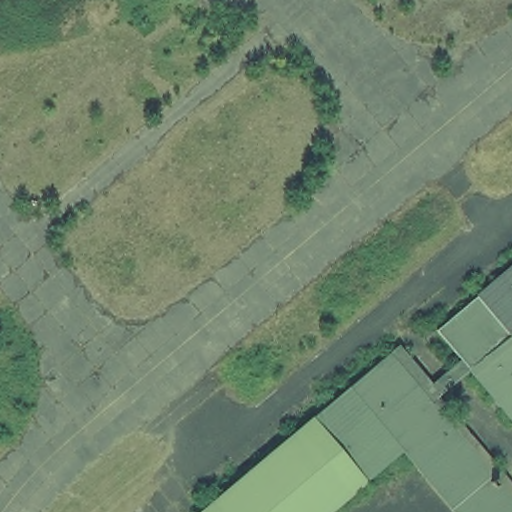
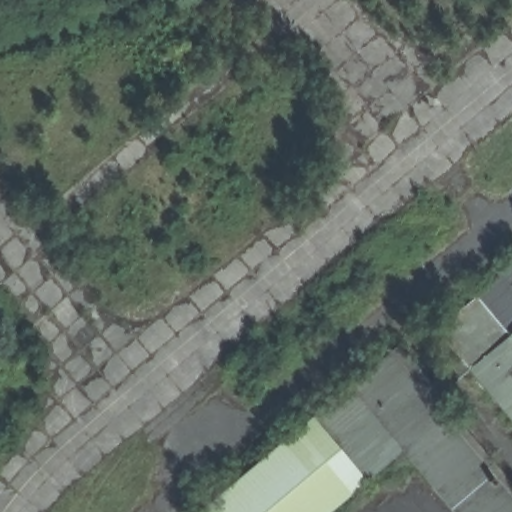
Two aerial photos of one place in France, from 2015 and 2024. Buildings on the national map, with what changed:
unchanged [(512,270),(512,419),(441,333),(512,270)]
unchanged [(512,512),(456,512),(409,457),(342,512),(204,512),(400,344),(512,480),(512,512)]

